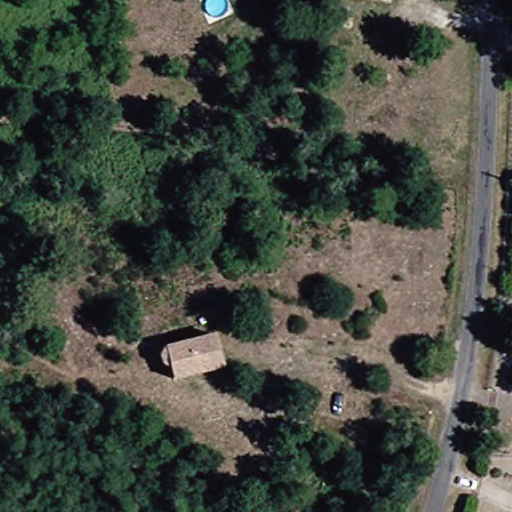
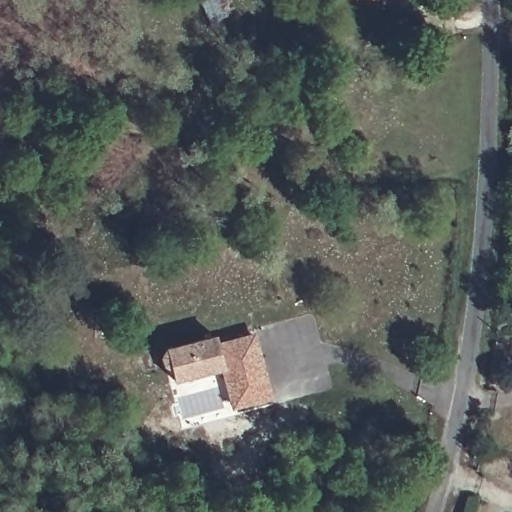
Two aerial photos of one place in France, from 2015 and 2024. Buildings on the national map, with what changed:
unchanged [(387,2),(354,0),(387,0),(387,2)]
new [(274,400),(233,410),(223,373),(225,373),(220,342),(256,332),(274,400)]
unchanged [(219,340),(225,373),(175,381),(172,366),(166,367),(164,353),(219,340)]

